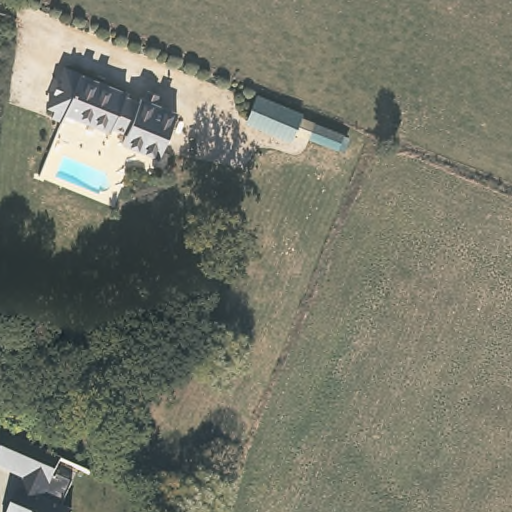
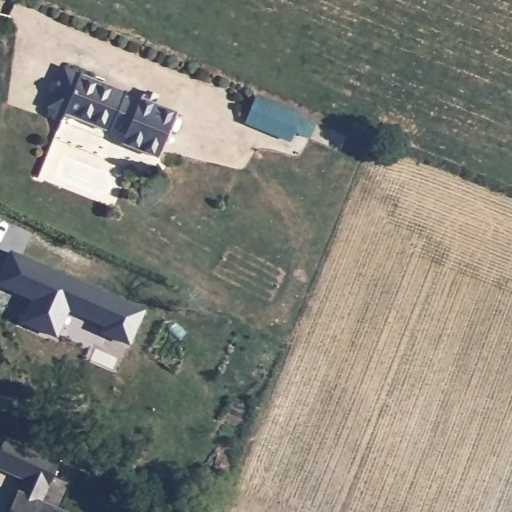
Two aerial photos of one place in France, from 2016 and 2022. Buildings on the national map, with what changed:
unchanged [(64,110),(50,105),(66,64),(142,92),(140,99),(155,104),(157,99),(191,112),(175,156),(139,143),(142,133),(128,127),(124,135),(105,127),(77,115),(64,110)]
new [(9,249),(141,307),(126,340),(100,328),(103,321),(66,305),(53,332),(22,318),(32,295),(0,281),(0,269),(9,249)]
unchanged [(70,512),(10,512),(19,490),(24,492),(28,478),(0,467),(0,452),(7,436),(62,460),(55,474),(72,483),(62,510),(70,512)]

